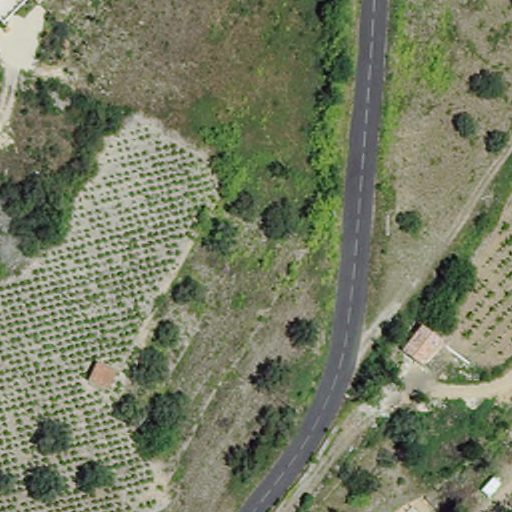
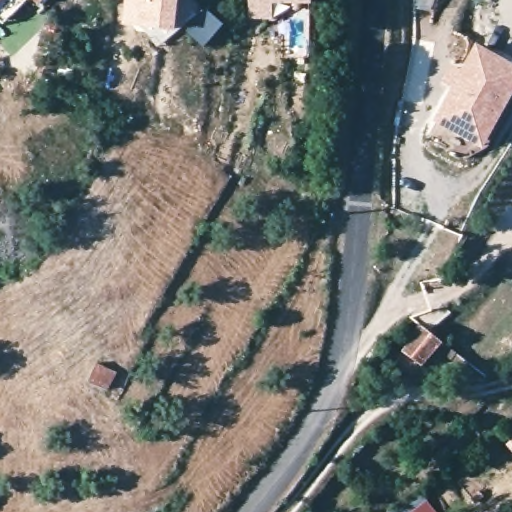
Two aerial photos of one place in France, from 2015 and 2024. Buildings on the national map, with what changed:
unchanged [(0,3),(0,0),(3,0),(0,3)]
unchanged [(41,4),(37,0),(45,0),(41,4)]
new [(176,31),(123,25),(125,0),(180,0),(176,31)]
new [(276,20),(256,19),(256,0),(277,0),(276,20)]
new [(314,1),(295,0),(314,0),(314,1)]
new [(213,11),(228,24),(208,47),(193,34),(213,11)]
new [(482,140),(444,118),(486,46),(512,61),(512,105),(502,124),(490,144),(482,140)]
unchanged [(450,347),(426,372),(408,358),(431,331),(450,347)]
unchanged [(120,371),(111,389),(91,380),(100,363),(120,371)]
new [(387,512),(419,488),(438,512),(387,512)]

